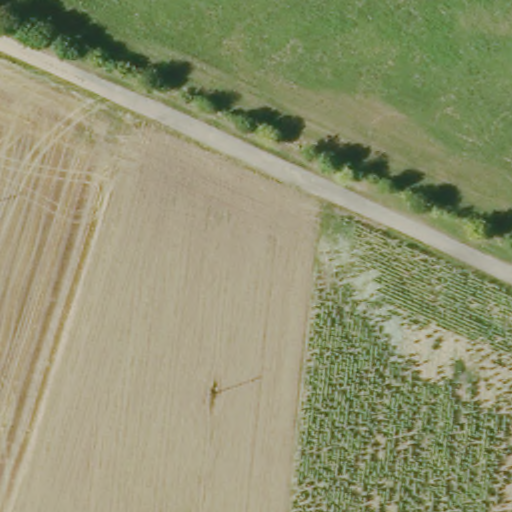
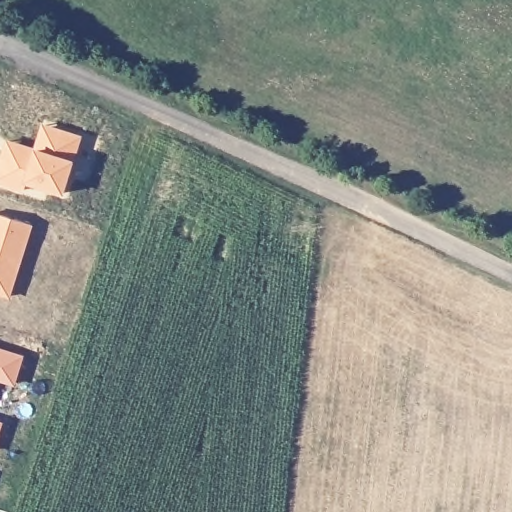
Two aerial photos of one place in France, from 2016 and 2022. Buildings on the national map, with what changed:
new [(5,142),(33,152),(41,126),(79,136),(61,192),(24,181),(22,188),(0,182),(0,159),(5,142)]
new [(33,224),(11,298),(0,295),(0,214),(33,224)]

